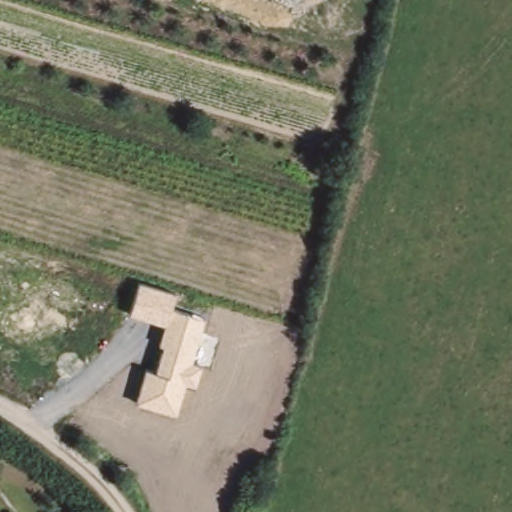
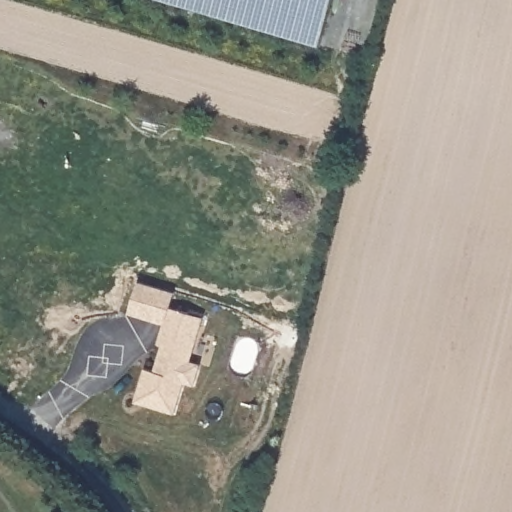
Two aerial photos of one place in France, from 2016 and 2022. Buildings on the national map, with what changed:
new [(320,45),(169,0),(333,0),(320,45)]
unchanged [(174,290),(171,305),(202,315),(192,361),(199,362),(194,384),(185,380),(175,412),(135,399),(144,367),(154,370),(161,345),(158,343),(163,323),(128,312),(137,280),(174,290)]

